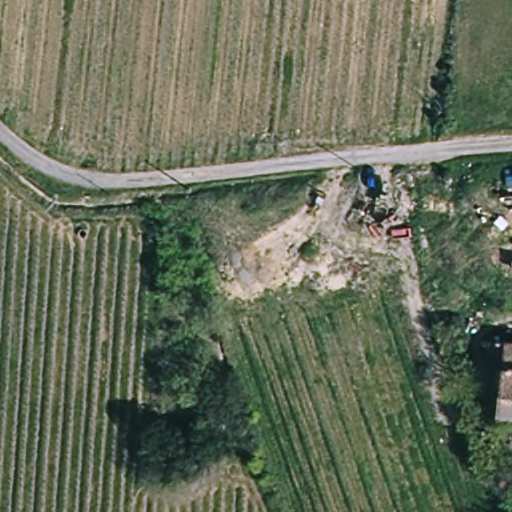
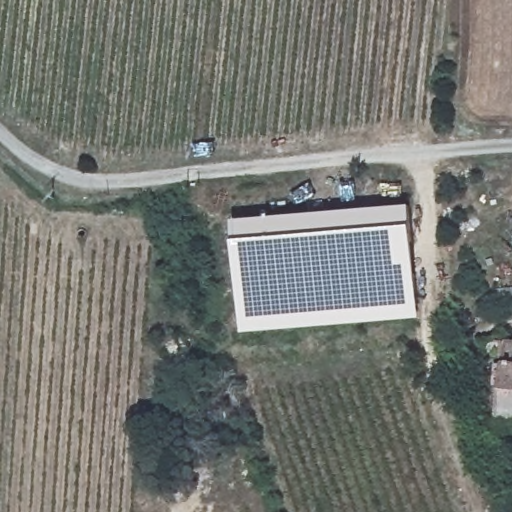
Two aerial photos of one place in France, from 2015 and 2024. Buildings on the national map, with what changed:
new [(420,318),(241,334),(231,220),(409,205),(420,318)]
unchanged [(504,388),(505,378),(494,377),(499,337),(510,339),(512,339),(512,389),(504,388)]
unchanged [(502,415),(504,388),(512,389),(512,416),(502,415)]

